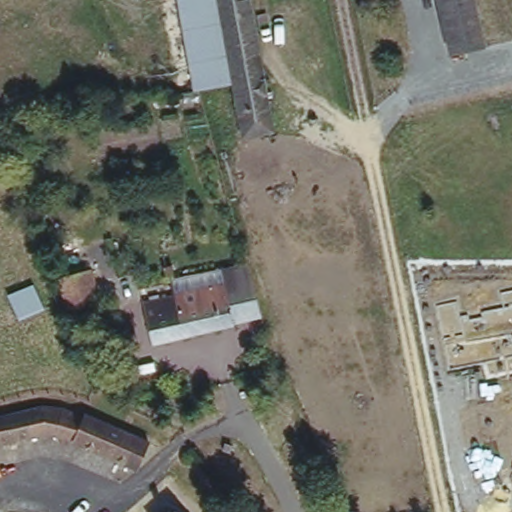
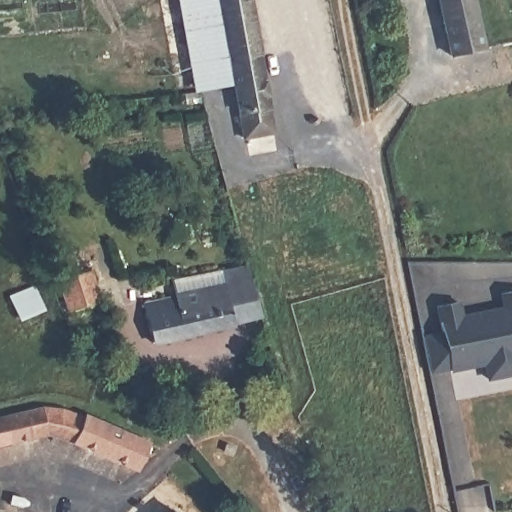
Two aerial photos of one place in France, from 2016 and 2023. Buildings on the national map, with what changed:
unchanged [(280,133),(243,138),(231,82),(191,87),(176,0),(255,0),(280,133)]
unchanged [(493,71),(457,83),(437,0),(478,0),(493,71)]
unchanged [(101,299),(62,306),(52,275),(91,263),(101,299)]
unchanged [(171,304),(165,281),(246,268),(265,324),(149,346),(141,310),(171,304)]
new [(32,283),(44,311),(20,322),(7,295),(32,283)]
new [(486,378),(480,364),(448,369),(437,304),(458,298),(461,314),(469,313),(469,319),(482,315),(480,310),(505,305),(500,289),(512,288),(512,373),(486,378)]
unchanged [(149,442),(135,476),(53,442),(0,455),(0,415),(51,401),(149,442)]
unchanged [(345,512),(328,512),(342,505),(345,512)]

